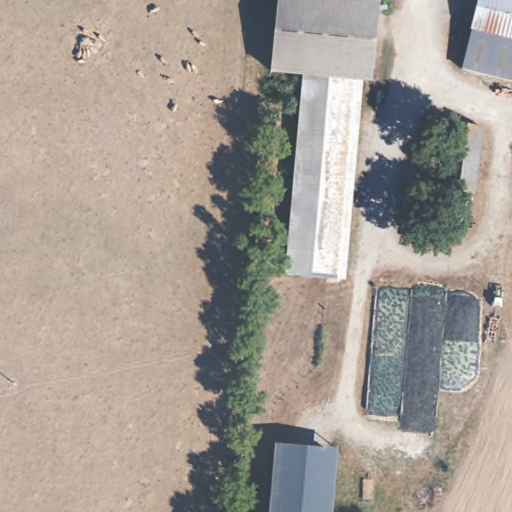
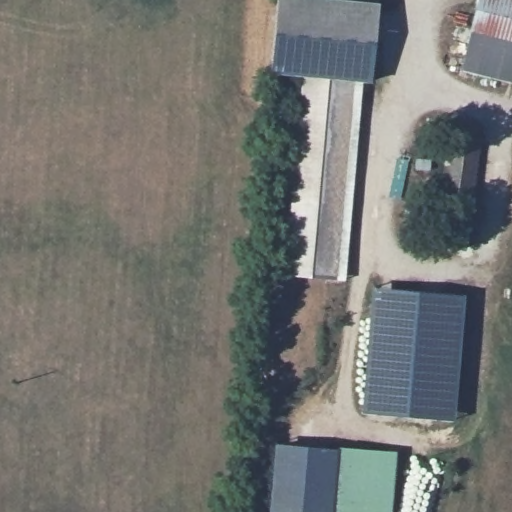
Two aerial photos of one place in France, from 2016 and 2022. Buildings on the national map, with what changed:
unchanged [(367,82),(359,82),(349,81),(301,75),(263,71),(271,0),(340,0),(367,3),(376,4),(367,82)]
unchanged [(471,0),(512,0),(512,77),(457,64),(471,0)]
unchanged [(349,81),(327,281),(278,276),(301,75),(349,81)]
unchanged [(476,129),(467,197),(435,193),(443,125),(476,129)]
new [(461,251),(428,246),(435,193),(467,197),(461,251)]
new [(373,286),(466,294),(455,419),(364,411),(373,286)]
new [(337,446),(397,450),(391,512),(331,512),(337,452),(337,446)]
unchanged [(337,452),(331,512),(269,512),(275,447),(337,452)]

